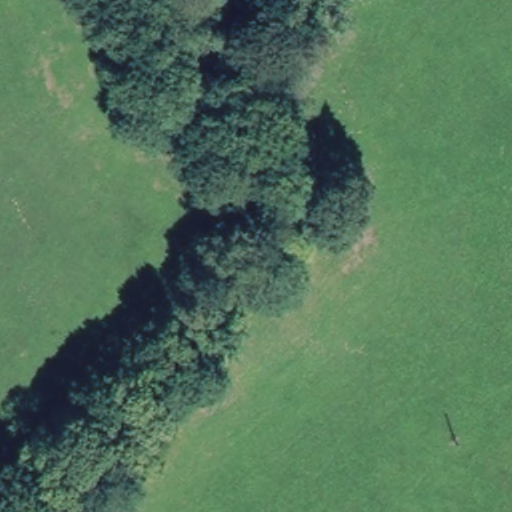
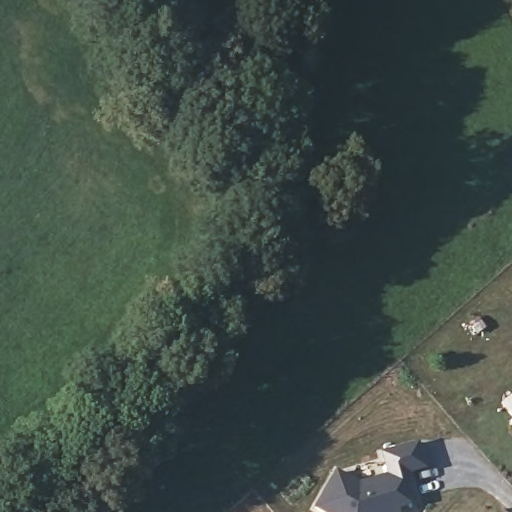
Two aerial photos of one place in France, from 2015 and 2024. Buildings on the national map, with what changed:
new [(512,417),(512,422),(510,420),(512,417)]
new [(358,483),(390,474),(383,452),(416,442),(423,466),(407,471),(412,488),(401,492),(403,500),(398,501),(395,506),(397,512),(327,512),(316,506),(336,471),(358,483)]

